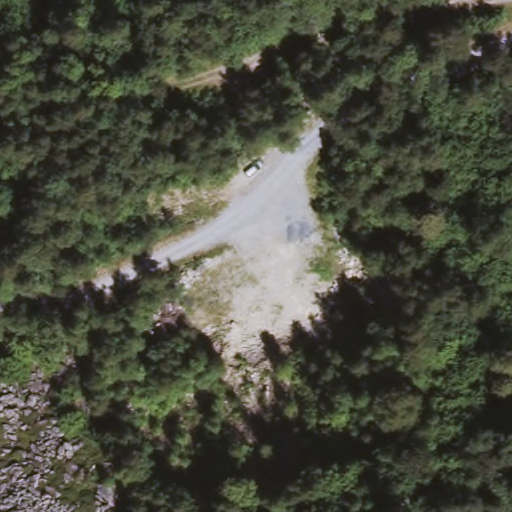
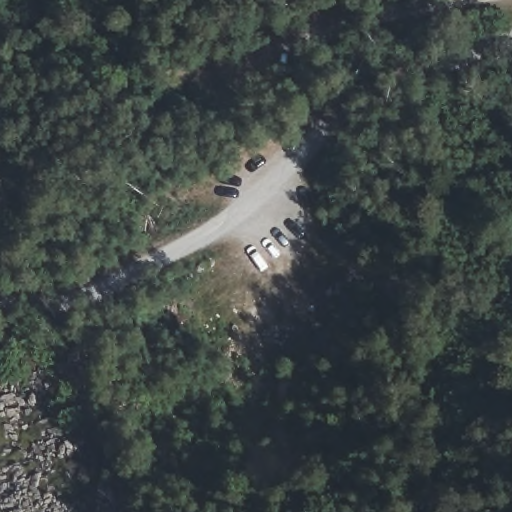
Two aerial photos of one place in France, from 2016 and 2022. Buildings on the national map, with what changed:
[]

